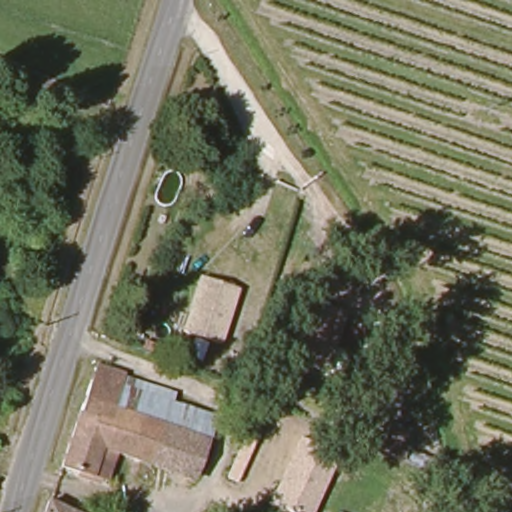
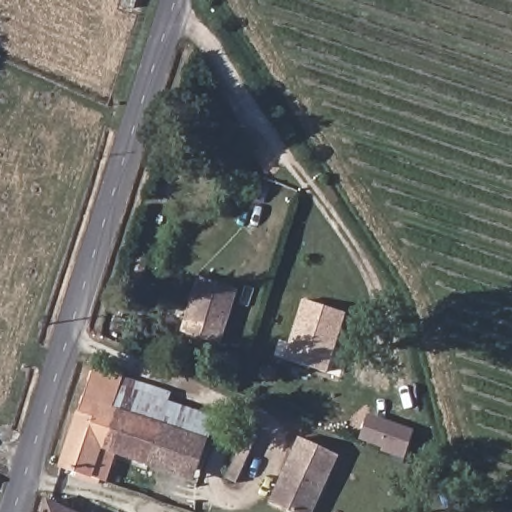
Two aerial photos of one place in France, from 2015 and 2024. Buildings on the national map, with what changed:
unchanged [(180,332),(196,276),(238,289),(219,345),(180,332)]
new [(327,372),(282,355),(300,300),(344,313),(327,372)]
unchanged [(169,463),(166,470),(100,445),(91,468),(62,458),(97,355),(125,365),(121,376),(173,392),(170,402),(212,415),(206,432),(190,472),(169,463)]
new [(405,458),(358,441),(368,413),(413,428),(405,458)]
unchanged [(270,505),(298,438),(338,455),(313,512),(287,512),(270,505)]
unchanged [(48,500),(78,512),(44,512),(48,500)]

